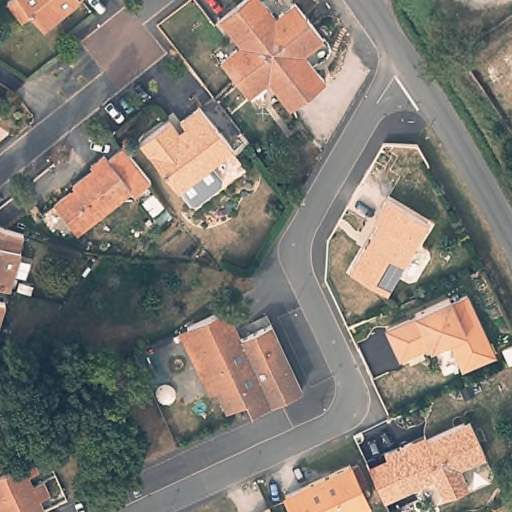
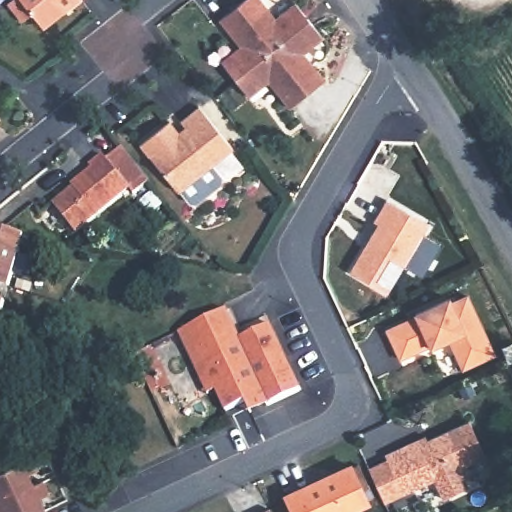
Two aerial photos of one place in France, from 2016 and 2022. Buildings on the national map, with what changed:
unchanged [(41,24),(28,9),(17,18),(2,0),(71,0),(41,24)]
unchanged [(220,55),(240,40),(221,13),(238,0),(267,0),(277,14),(296,0),(306,13),(240,64),(231,70),(220,55)]
unchanged [(240,64),(306,13),(322,35),(303,50),(323,77),(287,104),(267,76),(246,91),(231,70),(240,64)]
unchanged [(171,114),(183,130),(190,125),(182,114),(200,101),(211,116),(230,143),(231,144),(209,160),(219,174),(219,179),(192,198),(187,198),(177,184),(176,185),(141,137),(171,114)]
unchanged [(78,188),(76,185),(96,169),(94,165),(106,155),(109,159),(125,146),(152,181),(137,194),(132,188),(79,231),(57,205),(78,188)]
unchanged [(348,271),(377,225),(373,222),(387,201),(427,227),(384,294),(348,271)]
unchanged [(26,234),(22,248),(24,248),(12,286),(0,283),(0,225),(26,234)]
unchanged [(387,330),(416,316),(415,313),(448,298),(451,302),(467,295),(494,353),(462,368),(448,339),(431,347),(430,345),(400,359),(387,330)]
unchanged [(7,300),(0,323),(0,298),(7,300)]
unchanged [(246,407),(226,416),(216,394),(208,398),(179,336),(187,332),(227,314),(240,343),(271,329),(302,395),(268,411),(252,418),(246,407)]
unchanged [(485,455),(460,467),(468,486),(442,498),(434,479),(402,494),(384,454),(410,442),(425,435),(427,440),(469,421),(485,455)]
unchanged [(4,470),(32,457),(38,469),(28,474),(33,485),(0,500),(0,463),(4,470)]
unchanged [(292,512),(285,495),(351,465),(368,502),(348,512),(292,512)]
unchanged [(43,480),(49,493),(39,497),(45,510),(41,512),(0,512),(0,500),(33,485),(43,480)]
unchanged [(271,512),(261,512),(269,508),(271,512)]

